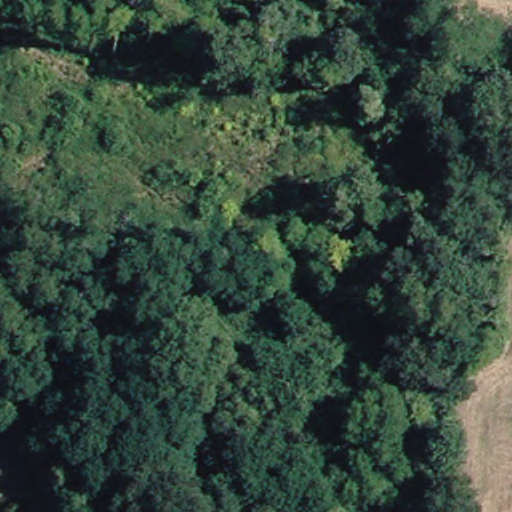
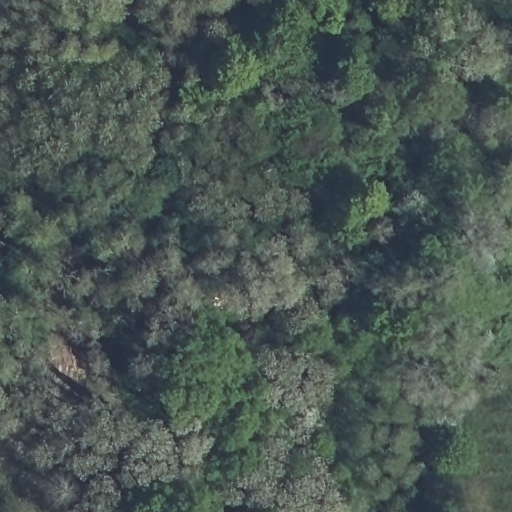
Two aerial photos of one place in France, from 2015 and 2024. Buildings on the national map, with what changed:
[]

